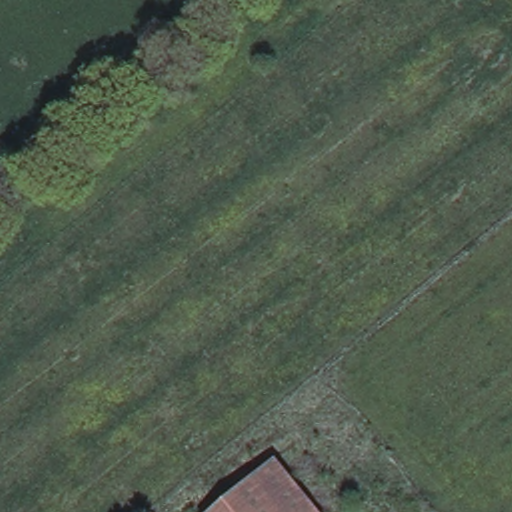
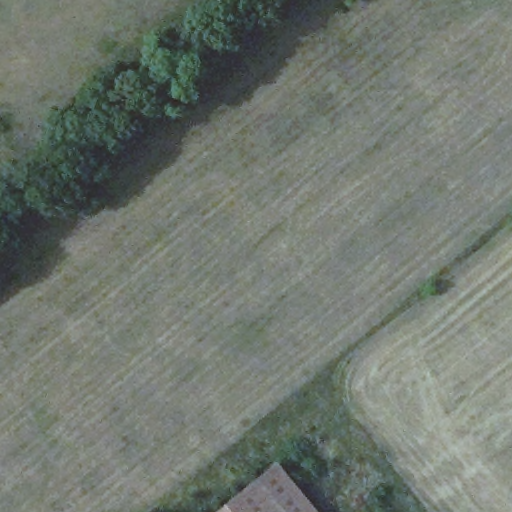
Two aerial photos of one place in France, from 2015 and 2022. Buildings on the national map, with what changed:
unchanged [(274,467),(310,512),(217,512),(274,467)]

